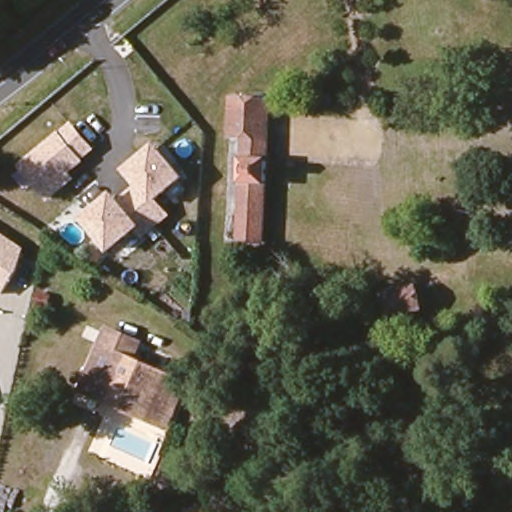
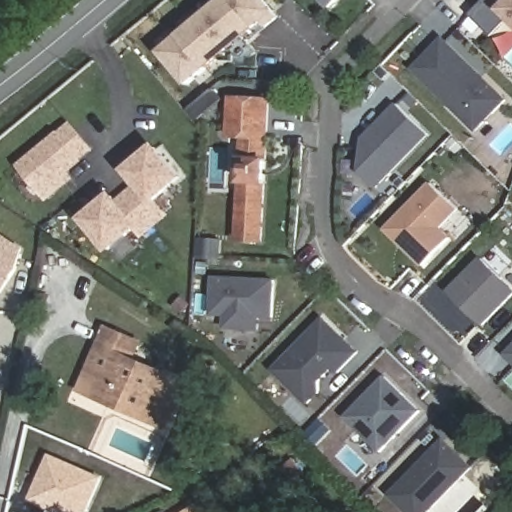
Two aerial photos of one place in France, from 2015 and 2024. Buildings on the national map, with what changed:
new [(221,0),(234,0),(257,26),(221,56),(189,83),(161,50),(221,0)]
new [(257,26),(234,0),(269,0),(282,17),(227,63),(221,56),(257,26)]
new [(328,8),(320,0),(337,0),(328,8)]
new [(472,15),(486,0),(512,0),(512,19),(493,36),(472,15)]
new [(477,132),(412,70),(443,37),(508,99),(477,132)]
new [(378,189),(361,173),(363,138),(398,104),(431,137),(378,189)]
unchanged [(268,107),(261,247),(236,245),(242,143),(227,141),(230,105),(268,107)]
unchanged [(72,172),(77,178),(47,198),(20,166),(75,120),(99,149),(72,172)]
unchanged [(162,197),(176,216),(146,236),(140,228),(110,253),(82,217),(117,190),(123,198),(137,188),(123,169),(157,143),(185,178),(162,197)]
new [(452,237),(422,267),(385,229),(432,182),(461,210),(443,228),(452,237)]
unchanged [(0,297),(0,231),(25,247),(1,297),(0,297)]
new [(486,326),(448,292),(482,256),(512,285),(512,298),(486,326)]
new [(261,318),(260,330),(226,329),(226,317),(212,316),(214,276),(276,279),(275,319),(261,318)]
demolished [(412,287),(419,310),(390,319),(382,297),(412,287)]
new [(272,371),(325,319),(359,353),(338,374),(335,369),(322,382),(322,390),(307,405),(272,371)]
unchanged [(135,348),(127,363),(180,388),(162,430),(79,393),(105,334),(135,348)]
new [(505,356),(512,348),(512,363),(505,356)]
new [(384,451),(348,416),(386,377),(422,412),(384,451)]
new [(442,501),(413,473),(445,439),(475,468),(442,501)]
new [(104,478),(90,512),(53,512),(27,501),(49,453),(104,478)]

